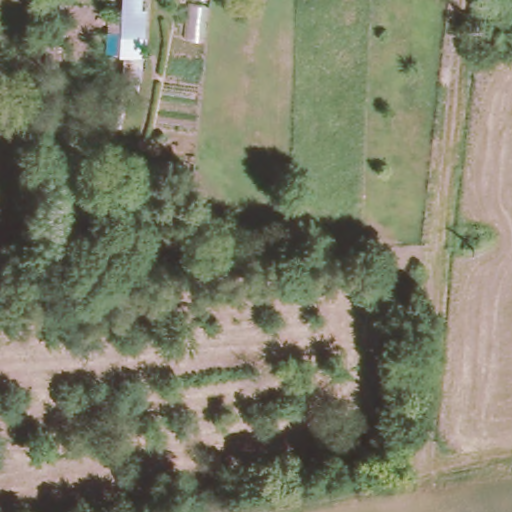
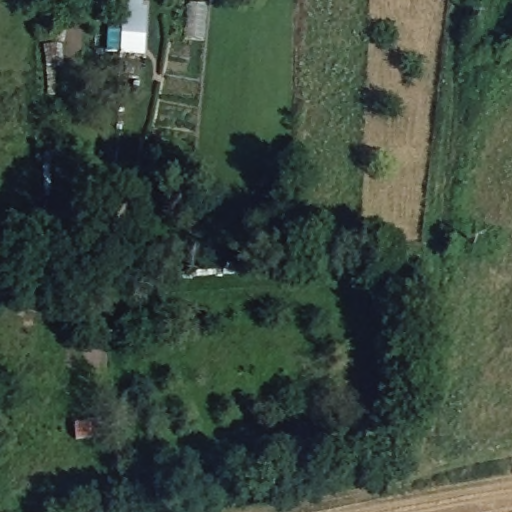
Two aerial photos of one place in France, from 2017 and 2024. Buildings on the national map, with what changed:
unchanged [(153,37),(148,37),(147,55),(130,55),(132,10),(132,0),(150,0),(150,11),(155,11),(153,37)]
unchanged [(153,58),(152,81),(133,80),(135,57),(153,58)]

